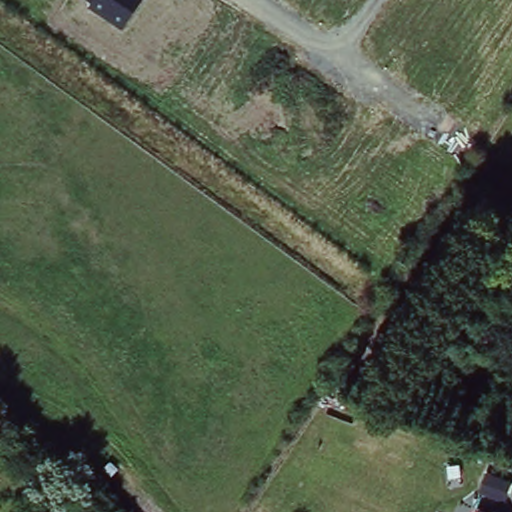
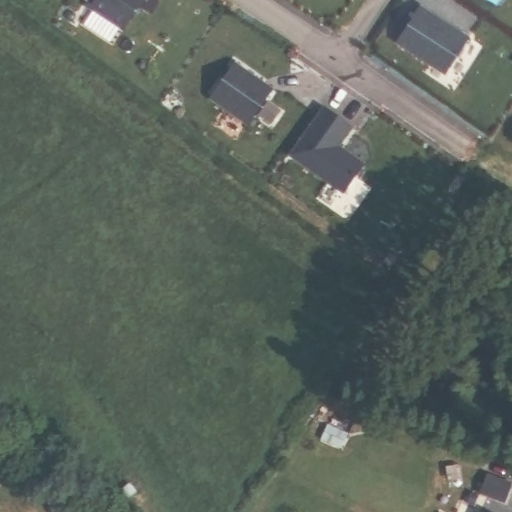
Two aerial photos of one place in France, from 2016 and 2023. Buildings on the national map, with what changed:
unchanged [(123,31),(88,9),(92,3),(88,0),(143,0),(123,31)]
new [(417,6),(468,40),(444,80),(395,47),(417,6)]
new [(234,64),(273,91),(244,127),(207,103),(234,64)]
new [(287,158),(324,104),(353,123),(337,146),(362,162),(342,194),(287,158)]
unchanged [(485,512),(477,512),(478,509),(485,512)]

